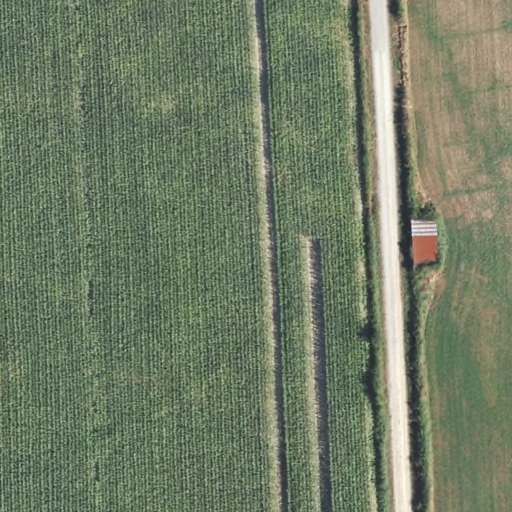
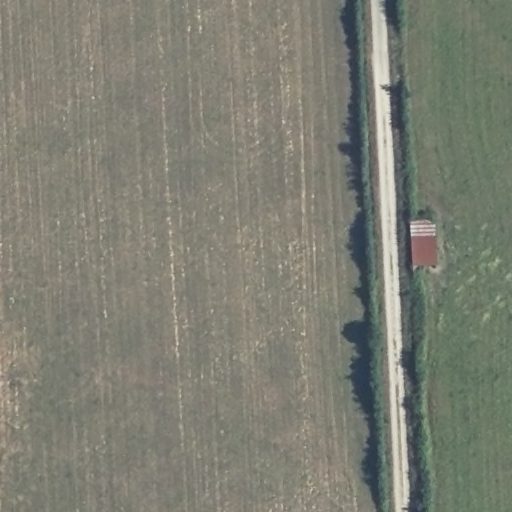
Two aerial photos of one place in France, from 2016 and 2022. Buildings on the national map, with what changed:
unchanged [(439,271),(415,271),(412,215),(437,214),(439,271)]

